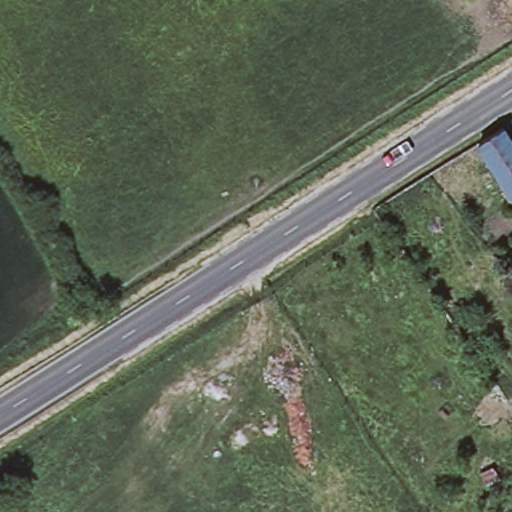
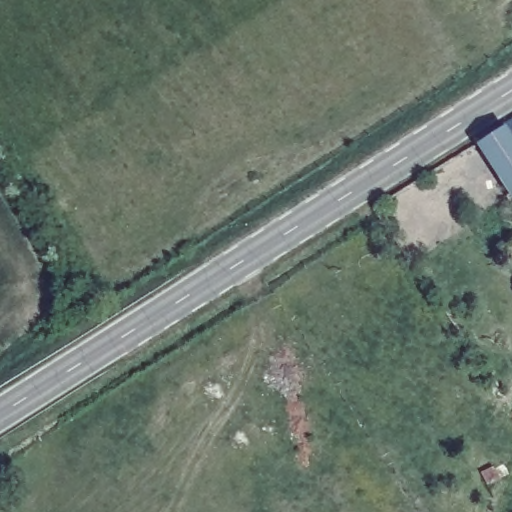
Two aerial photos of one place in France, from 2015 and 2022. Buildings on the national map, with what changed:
unchanged [(512,119),(512,140),(502,125),(512,119)]
unchanged [(512,140),(512,192),(477,141),(502,125),(512,140)]

